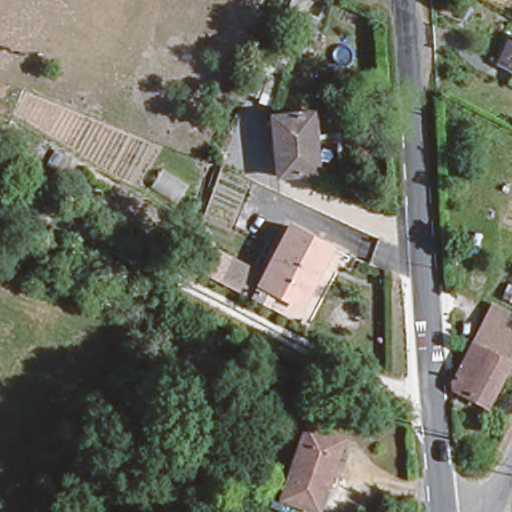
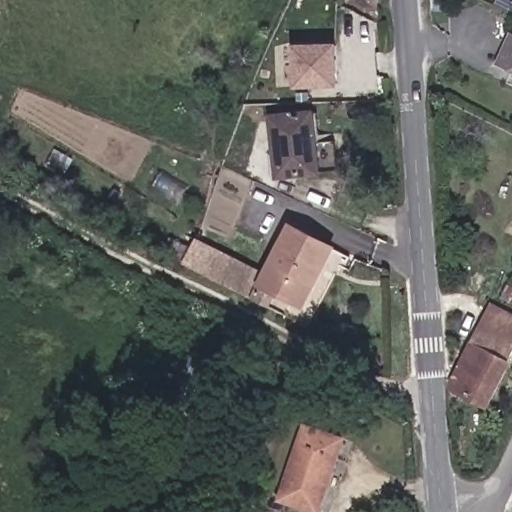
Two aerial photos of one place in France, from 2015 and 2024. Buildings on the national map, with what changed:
unchanged [(497,58),(511,32),(512,32),(512,65),(497,58)]
new [(331,47),(332,87),(293,88),(291,48),(331,47)]
unchanged [(312,169),(271,172),(266,111),(305,108),(312,169)]
unchanged [(339,244),(308,303),(268,281),(298,221),(339,244)]
unchanged [(512,325),(512,342),(488,388),(454,370),(454,365),(483,310),(512,325)]
unchanged [(203,384),(181,371),(197,343),(221,357),(203,384)]
unchanged [(308,509),(271,493),(303,423),(340,438),(308,509)]

